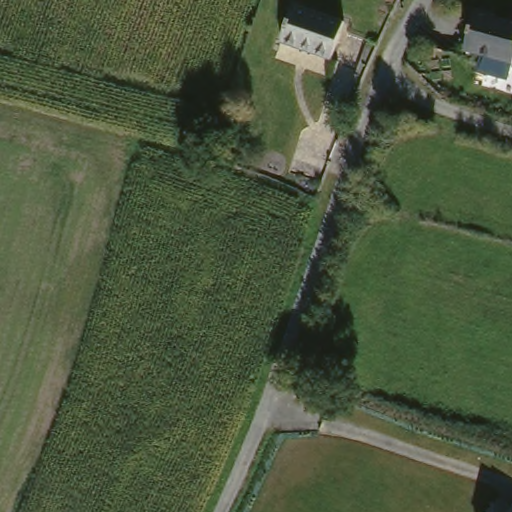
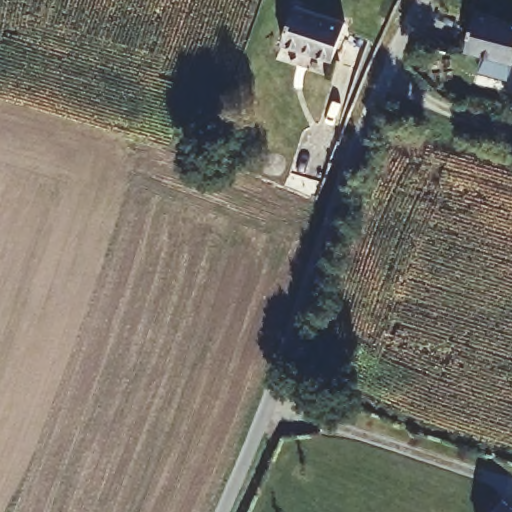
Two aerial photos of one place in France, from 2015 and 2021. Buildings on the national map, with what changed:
unchanged [(284,39),(297,2),(346,20),(334,56),(284,39)]
unchanged [(469,3),(488,6),(487,10),(512,13),(512,52),(511,54),(461,43),(469,3)]
unchanged [(512,508),(512,512),(491,512),(503,500),(512,508)]

